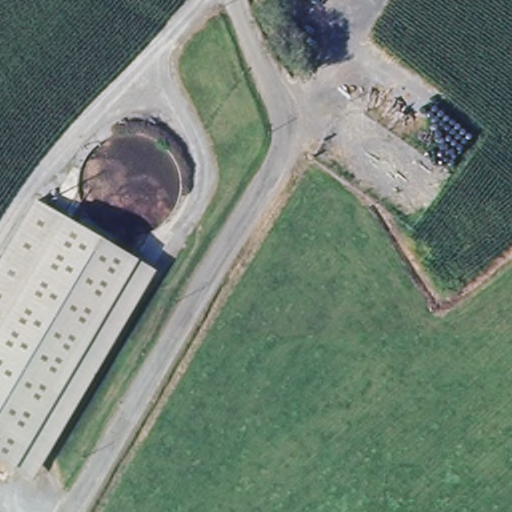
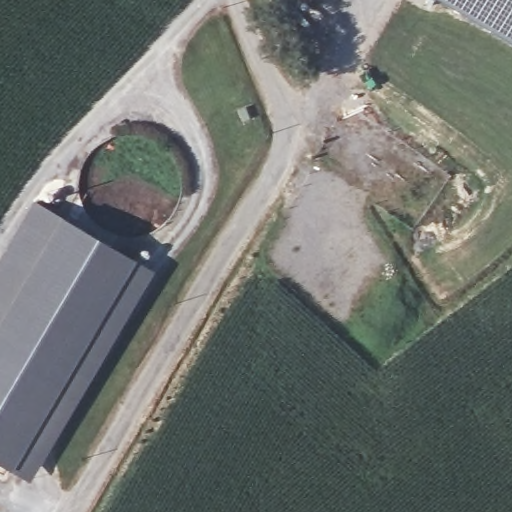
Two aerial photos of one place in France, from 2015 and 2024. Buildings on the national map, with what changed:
new [(438,0),(512,0),(512,43),(438,0)]
unchanged [(0,276),(37,214),(130,269),(12,470),(0,463),(0,276)]
unchanged [(130,269),(149,280),(33,481),(12,470),(130,269)]

